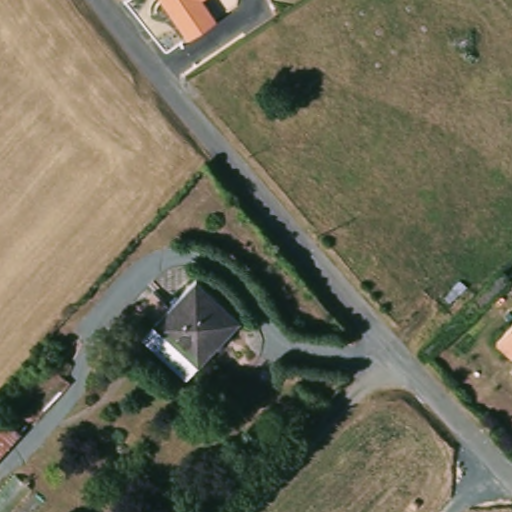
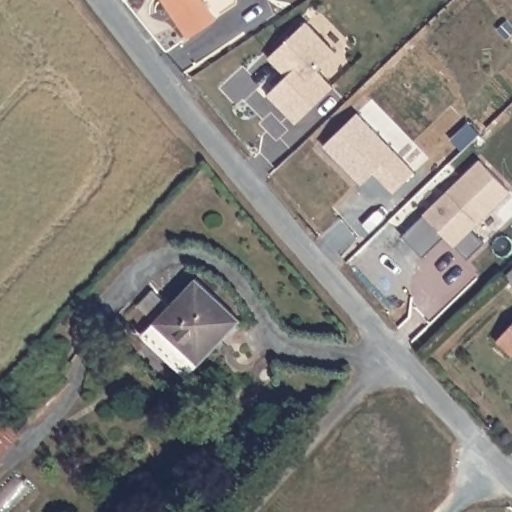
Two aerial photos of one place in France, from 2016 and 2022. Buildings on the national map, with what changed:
unchanged [(189,37),(165,0),(203,0),(216,19),(189,37)]
new [(287,74),(269,55),(306,20),(336,50),(318,69),(334,85),(296,121),(268,92),(287,74)]
new [(358,111),(415,171),(393,192),(374,171),(361,183),(324,144),(358,111)]
new [(480,160),(510,191),(470,229),(484,244),(467,260),(445,236),(423,257),(402,236),(480,160)]
unchanged [(194,368),(150,326),(190,281),(236,323),(194,368)]
unchanged [(503,337),(512,327),(512,345),(503,337)]
unchanged [(0,446),(0,424),(11,435),(0,446)]

